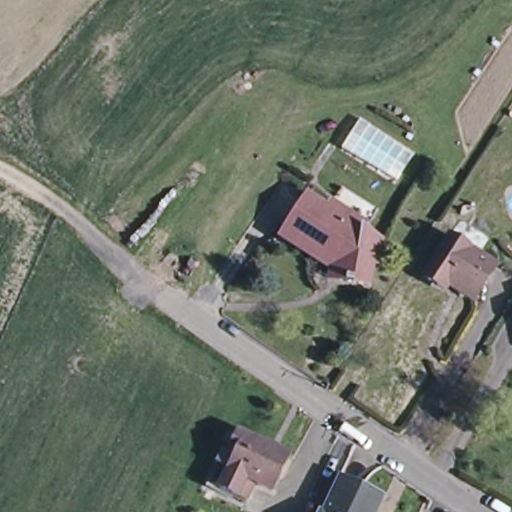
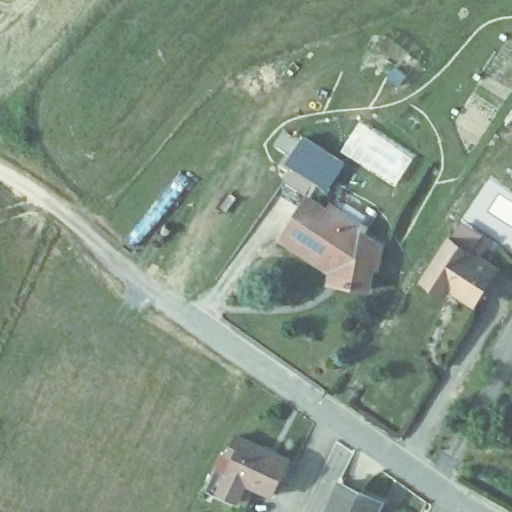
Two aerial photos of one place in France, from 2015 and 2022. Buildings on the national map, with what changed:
new [(326,188),(313,179),(286,162),(304,136),(330,153),(343,162),(326,188)]
unchanged [(313,202),(333,215),(336,211),(370,235),(368,238),(387,251),(383,272),(378,271),(373,294),(342,289),(345,274),(328,264),(324,270),(285,244),(313,202)]
unchanged [(496,268),(475,301),(450,286),(446,292),(425,279),(450,239),(496,268)]
unchanged [(217,497),(205,491),(222,456),(227,458),(236,439),(287,464),(270,499),(252,490),(243,509),(217,497)]
unchanged [(338,482),(379,502),(374,512),(324,512),(338,482)]

